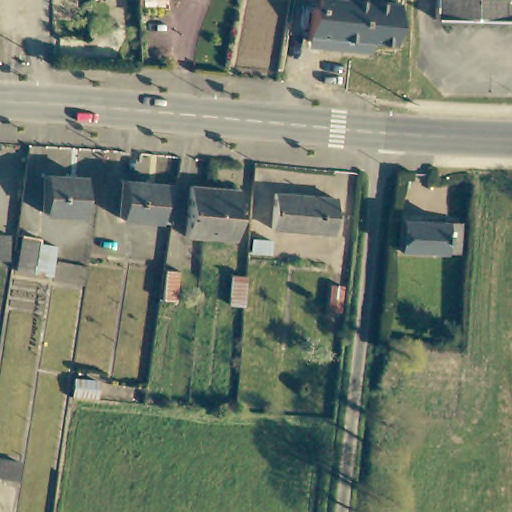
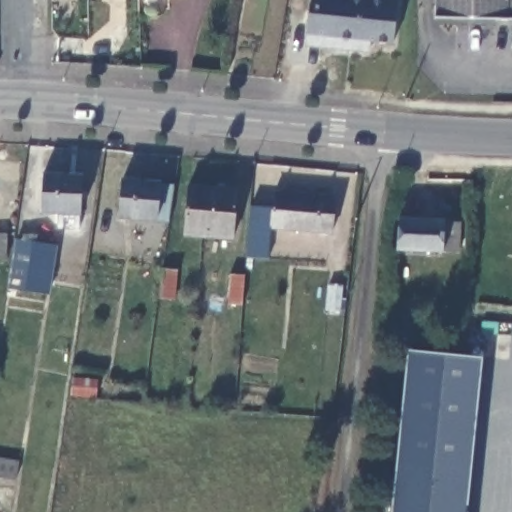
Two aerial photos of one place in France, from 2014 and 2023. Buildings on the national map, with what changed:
unchanged [(353,66),(327,63),(328,56),(301,53),(306,17),(311,18),(313,0),(340,0),(338,12),(393,19),(387,60),(364,57),(363,67),(353,66)]
unchanged [(488,31),(440,29),(431,17),(431,0),(512,0),(512,28),(505,21),(488,31)]
unchanged [(38,214),(42,175),(80,179),(77,218),(38,214)]
unchanged [(158,225),(109,220),(112,184),(163,188),(158,225)]
unchanged [(234,241),(204,239),(184,237),(188,191),(207,193),(238,195),(234,241)]
unchanged [(273,227),(275,200),(330,204),(328,231),(273,227)]
unchanged [(448,227),(447,258),(387,255),(389,224),(448,227)]
unchanged [(14,274),(20,237),(40,240),(37,263),(52,265),(50,278),(14,274)]
unchanged [(162,268),(178,270),(174,299),(158,297),(162,268)]
unchanged [(232,271),(247,272),(245,305),(230,304),(232,271)]
new [(391,512),(408,351),(481,359),(467,512),(391,512)]

